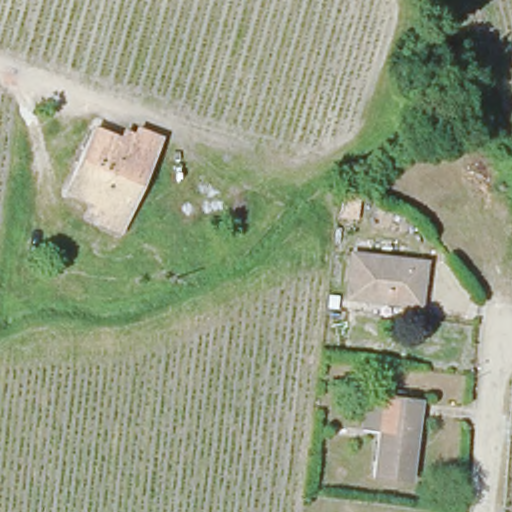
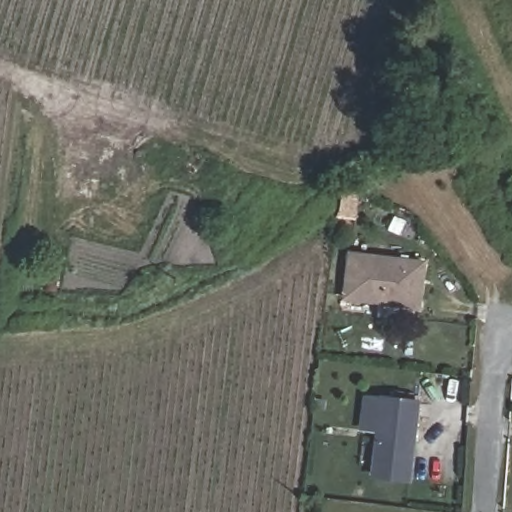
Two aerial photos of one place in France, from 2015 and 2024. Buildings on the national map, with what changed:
demolished [(93,225),(96,216),(101,203),(68,191),(90,132),(126,143),(130,129),(157,136),(124,228),(121,236),(93,225)]
unchanged [(420,308),(345,300),(350,256),(426,265),(420,308)]
unchanged [(405,476),(365,472),(375,394),(415,396),(405,476)]

